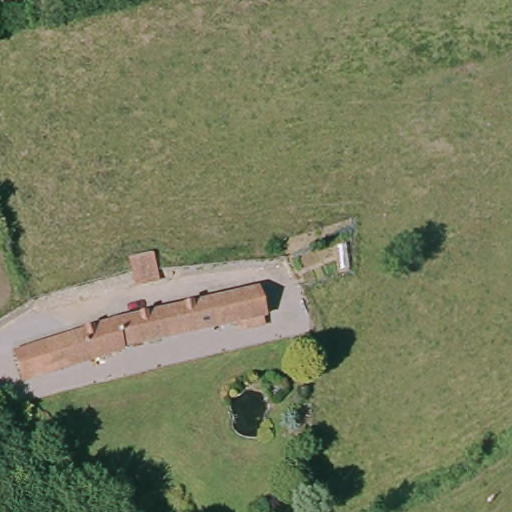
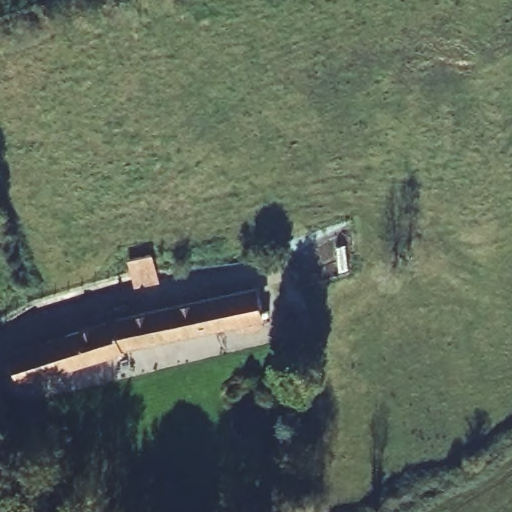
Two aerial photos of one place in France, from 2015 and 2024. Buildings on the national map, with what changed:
unchanged [(136,266),(155,261),(158,272),(162,290),(142,294),(138,275),(136,266)]
unchanged [(113,314),(253,281),(263,324),(248,326),(246,316),(123,344),(125,353),(116,355),(114,347),(17,378),(8,347),(113,314)]

